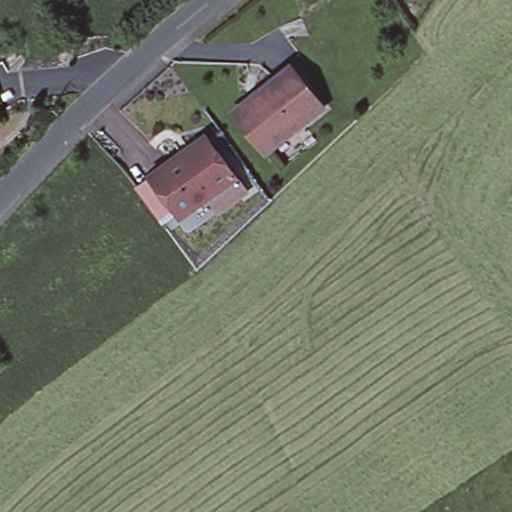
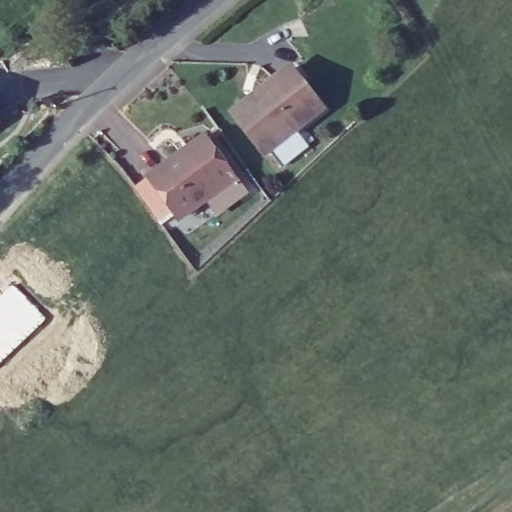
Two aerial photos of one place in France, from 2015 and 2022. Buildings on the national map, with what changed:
unchanged [(320,106),(264,149),(240,116),(236,112),(264,91),(291,70),(320,106)]
unchanged [(138,189),(151,178),(183,155),(181,151),(206,132),(211,139),(236,174),(246,189),(220,209),(209,195),(181,216),(178,213),(163,224),(138,189)]
new [(44,320),(0,362),(0,297),(13,284),(44,320)]

